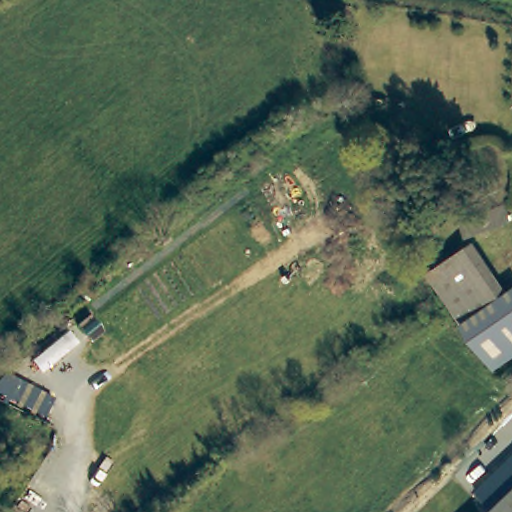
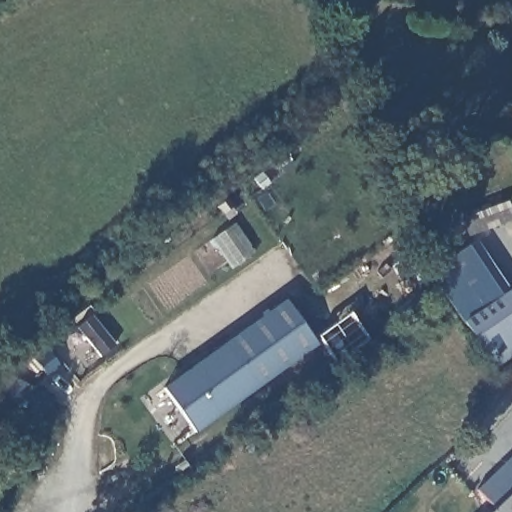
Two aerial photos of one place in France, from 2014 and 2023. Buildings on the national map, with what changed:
unchanged [(512,197),(512,216),(482,233),(473,219),(512,197)]
unchanged [(465,324),(430,275),(476,244),(511,293),(465,324)]
unchanged [(512,291),(512,350),(493,363),(465,324),(511,293),(512,291)]
new [(287,299),(321,344),(195,434),(162,389),(287,299)]
unchanged [(464,504),(512,461),(512,512),(471,512),(464,504)]

